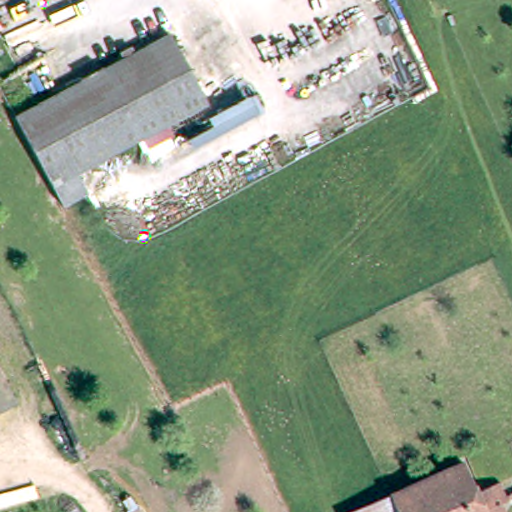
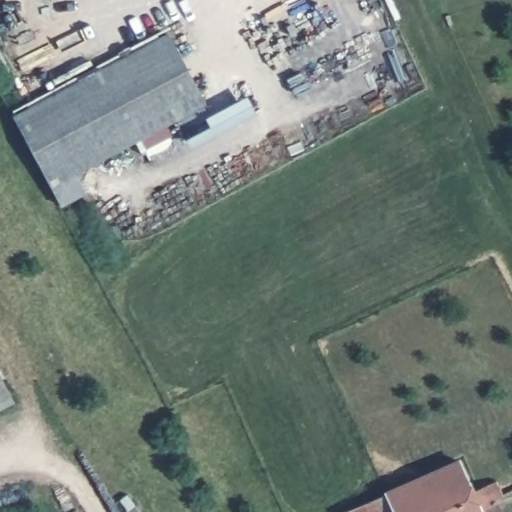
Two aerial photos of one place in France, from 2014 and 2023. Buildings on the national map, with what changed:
unchanged [(82,191),(62,202),(15,114),(166,31),(185,62),(208,100),(204,101),(72,174),(82,191)]
unchanged [(0,371),(12,393),(0,400),(0,371)]
unchanged [(382,489),(457,456),(472,486),(492,477),(500,493),(480,502),(485,512),(393,512),(382,489)]
unchanged [(393,512),(340,512),(340,510),(382,489),(393,512)]

